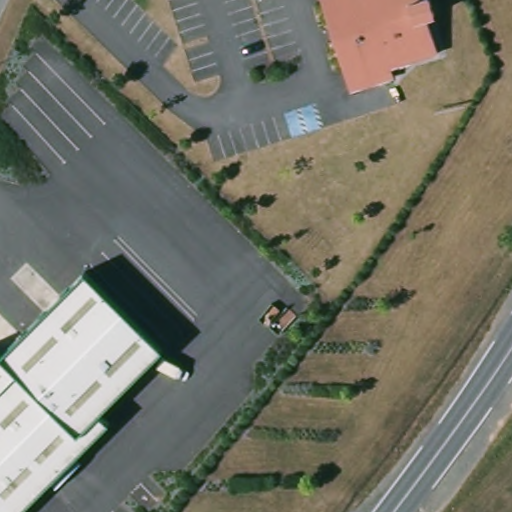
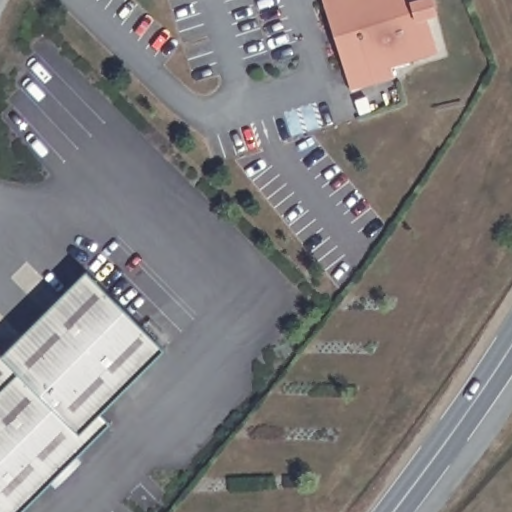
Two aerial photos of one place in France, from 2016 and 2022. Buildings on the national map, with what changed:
unchanged [(428,10),(426,10),(438,47),(390,62),(394,72),(351,86),(322,0),(424,0),(428,10)]
unchanged [(84,274),(161,350),(96,413),(108,425),(18,512),(0,512),(0,355),(1,356),(84,274)]

